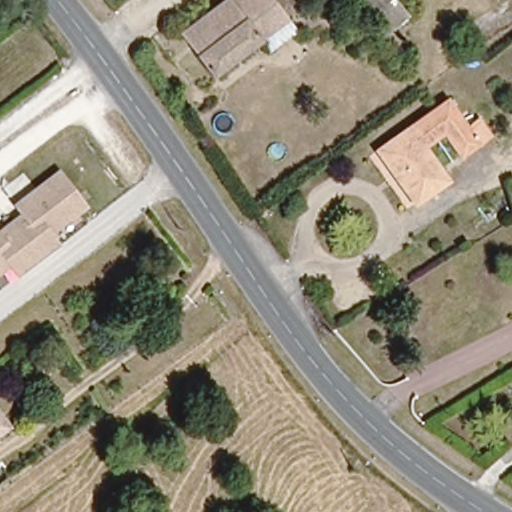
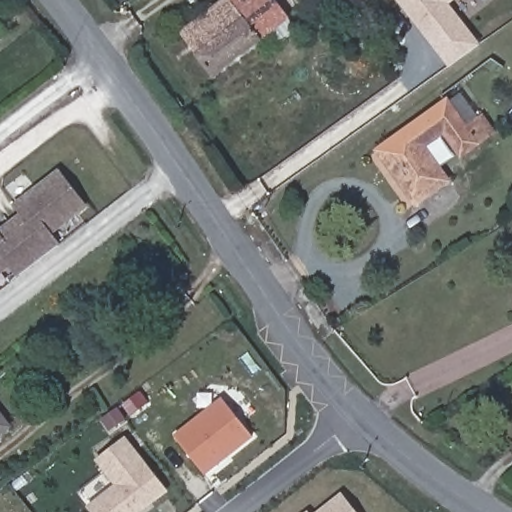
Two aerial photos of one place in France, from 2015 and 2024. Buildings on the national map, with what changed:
unchanged [(262,40),(216,75),(181,31),(220,0),(271,0),(272,1),(274,0),(287,0),(295,10),(286,17),(287,19),(273,30),(281,40),(270,50),(262,40)]
unchanged [(361,0),(398,0),(411,16),(391,35),(361,0)]
new [(451,66),(401,0),(445,0),(481,45),(451,66)]
new [(445,0),(455,0),(448,5),(445,0)]
unchanged [(439,124),(418,139),(443,174),(411,197),(373,145),(442,96),(472,138),(457,149),(439,124)]
unchanged [(54,236),(60,246),(19,278),(10,267),(0,274),(0,229),(21,214),(13,203),(58,170),(87,209),(54,236)]
new [(224,401),(253,439),(205,476),(175,438),(224,401)]
unchanged [(0,431),(0,416),(7,425),(0,431)]
new [(117,487),(97,461),(127,440),(168,492),(143,512),(92,512),(90,509),(117,487)]
new [(341,496),(353,512),(322,512),(341,496)]

